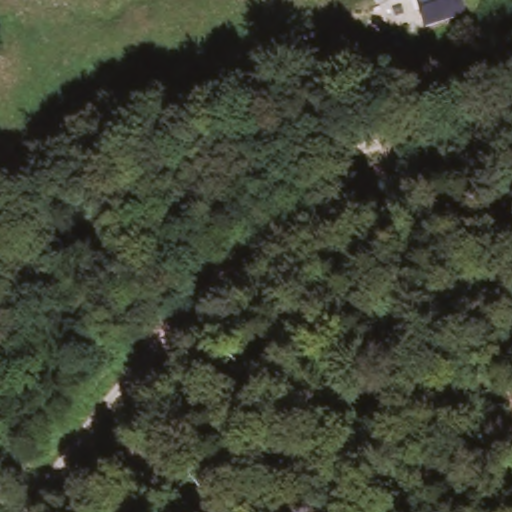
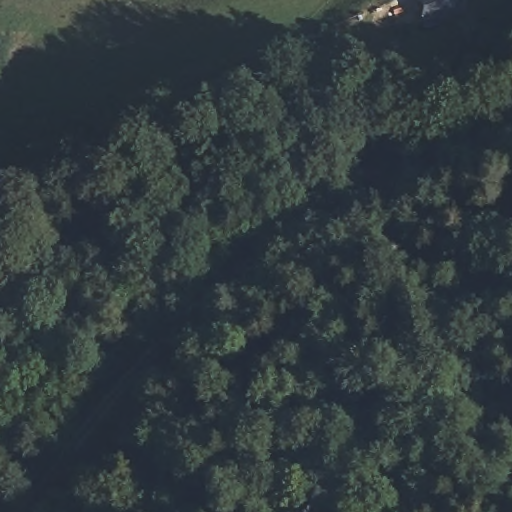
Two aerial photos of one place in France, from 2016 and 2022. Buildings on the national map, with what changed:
unchanged [(456,0),(466,0),(477,30),(442,41),(431,10),(456,0)]

